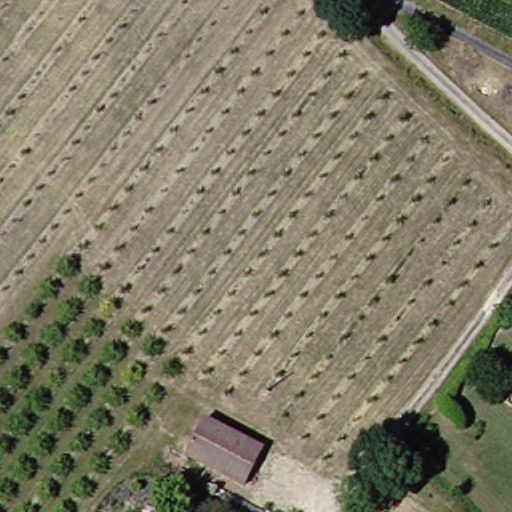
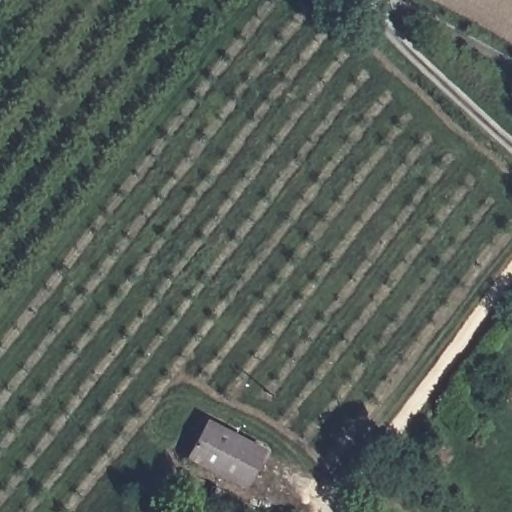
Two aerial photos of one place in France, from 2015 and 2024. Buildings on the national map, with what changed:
unchanged [(241,489),(190,460),(207,427),(259,457),(241,489)]

